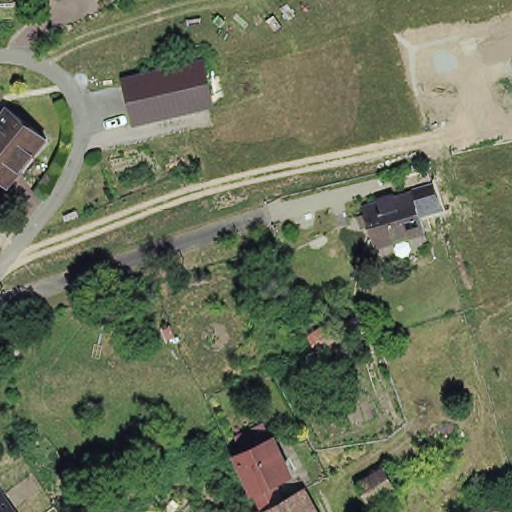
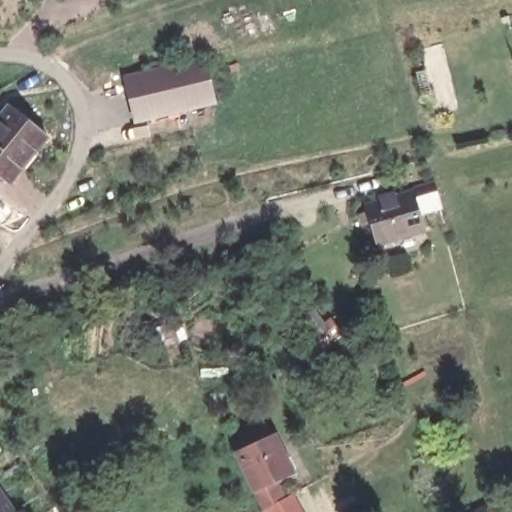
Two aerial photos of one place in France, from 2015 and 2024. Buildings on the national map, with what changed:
unchanged [(135,124),(126,82),(177,69),(202,63),(203,67),(211,108),(188,112),(135,124)]
unchanged [(3,109),(42,140),(5,188),(0,184),(0,113),(3,109)]
unchanged [(363,229),(361,223),(360,217),(368,215),(366,207),(413,193),(416,206),(425,234),(377,248),(371,226),(363,229)]
unchanged [(251,494),(234,458),(269,441),(286,477),(269,485),(277,503),(291,495),(301,512),(258,512),(251,494)]
unchanged [(486,501),(495,512),(467,512),(486,501)]
unchanged [(7,512),(0,512),(0,502),(7,512)]

